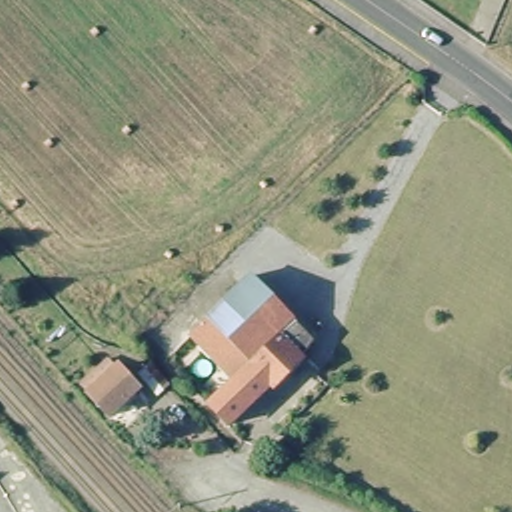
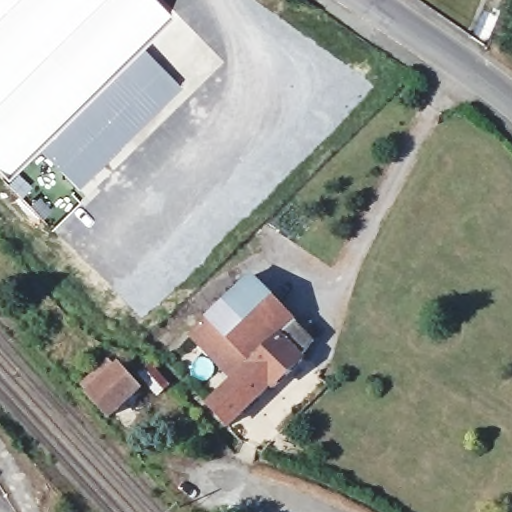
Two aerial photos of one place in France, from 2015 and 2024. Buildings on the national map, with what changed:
new [(172,11),(140,45),(183,85),(159,110),(78,189),(36,146),(5,174),(0,170),(0,0),(160,0),(172,11)]
unchanged [(320,340),(304,357),(307,359),(278,387),(275,384),(233,424),(202,392),(227,367),(198,334),(254,276),(320,340)]
unchanged [(111,420),(84,389),(111,365),(118,374),(123,370),(132,380),(151,363),(174,387),(155,404),(142,391),(115,416),(111,420)]

